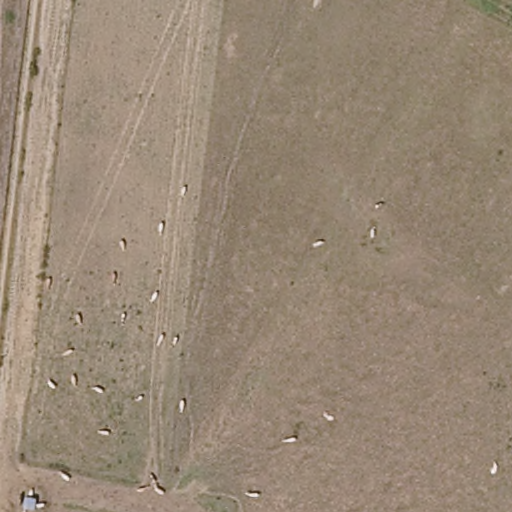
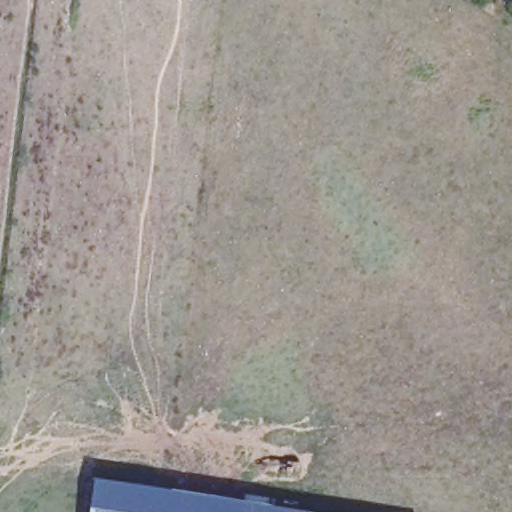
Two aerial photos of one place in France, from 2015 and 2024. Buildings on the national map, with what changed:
new [(94,476),(242,499),(240,512),(88,512),(94,476)]
new [(324,512),(240,512),(242,499),(324,512)]

